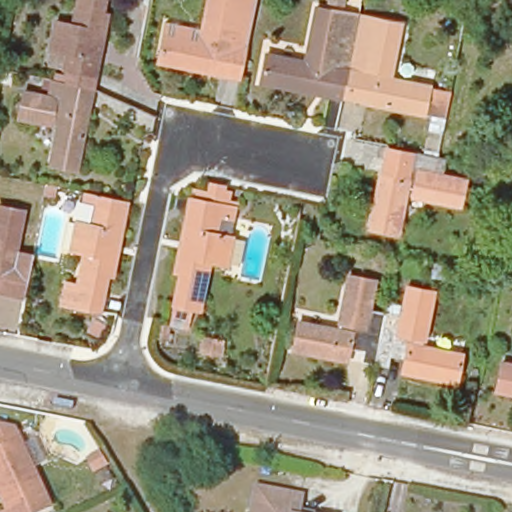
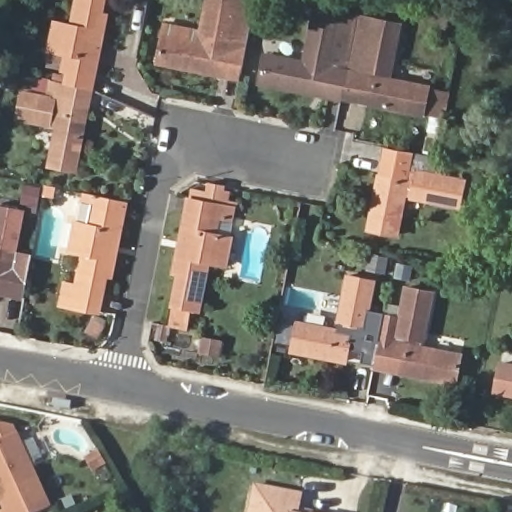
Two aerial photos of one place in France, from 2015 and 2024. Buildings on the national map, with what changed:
unchanged [(65,73),(60,72),(63,55),(47,52),(52,23),(69,26),(73,0),(99,0),(96,14),(101,15),(87,89),(64,85),(65,73)]
unchanged [(162,32),(201,40),(209,0),(255,0),(239,73),(225,71),(211,68),(157,57),(162,32)]
unchanged [(366,108),(367,94),(358,91),(357,101),(326,96),(327,88),(318,86),(317,96),(256,86),(262,53),(302,60),(312,6),(345,11),(372,17),(400,21),(391,78),(431,85),(430,87),(425,118),(366,108)]
unchanged [(84,102),(70,100),(67,114),(81,117),(70,170),(44,165),(52,127),(13,119),(18,94),(57,101),(60,84),(64,85),(87,89),(84,102)]
unchanged [(430,87),(450,91),(438,155),(419,151),(425,118),(430,87)]
unchanged [(434,173),(468,180),(462,208),(407,196),(398,235),(373,231),(384,175),(387,161),(390,147),(437,157),(434,173)]
unchanged [(122,211),(127,212),(113,281),(107,280),(105,293),(100,312),(56,304),(60,284),(75,287),(81,255),(67,252),(74,221),(86,223),(89,205),(95,206),(97,195),(126,200),(122,211)]
unchanged [(194,199),(232,207),(230,218),(220,216),(216,231),(234,235),(227,265),(210,262),(201,308),(178,304),(184,274),(180,273),(194,199)]
unchanged [(13,274),(0,271),(0,202),(22,207),(12,261),(15,262),(17,252),(31,254),(24,288),(11,286),(13,274)]
unchanged [(358,363),(361,349),(347,346),(344,360),(290,349),(295,323),(333,331),(344,276),(370,281),(361,325),(380,329),(372,366),(358,363)]
unchanged [(380,329),(397,333),(406,288),(432,294),(421,348),(461,356),(456,383),(400,372),(402,357),(390,355),(387,369),(372,366),(380,329)]
unchanged [(496,386),(501,360),(512,362),(512,389),(496,386)]
unchanged [(16,433),(49,508),(39,512),(0,512),(0,511),(5,508),(0,497),(0,424),(14,428),(16,433)]
unchanged [(99,448),(107,464),(90,471),(82,455),(99,448)]
unchanged [(255,480),(297,490),(299,490),(298,495),(315,499),(312,512),(248,512),(255,480)]

